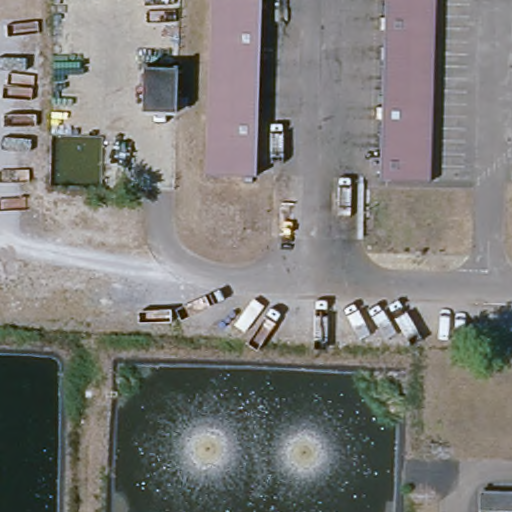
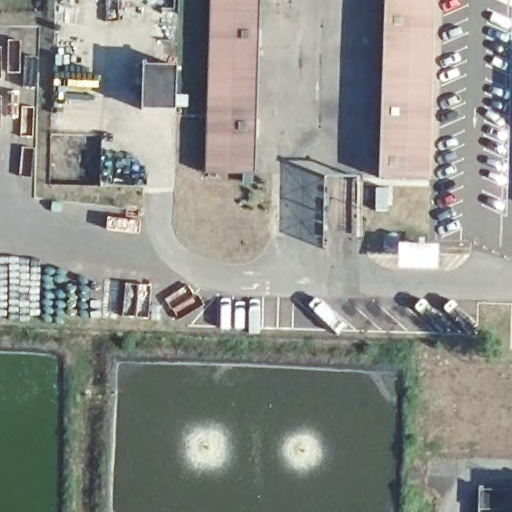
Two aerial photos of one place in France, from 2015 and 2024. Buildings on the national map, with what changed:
unchanged [(258,0),(256,187),(205,186),(207,0),(258,0)]
unchanged [(432,0),(430,181),(382,179),(378,179),(382,0),(432,0)]
unchanged [(142,112),(142,67),(177,67),(177,97),(187,97),(187,109),(176,109),(176,112),(142,112)]
unchanged [(478,492),(512,493),(512,512),(478,512),(478,492)]

